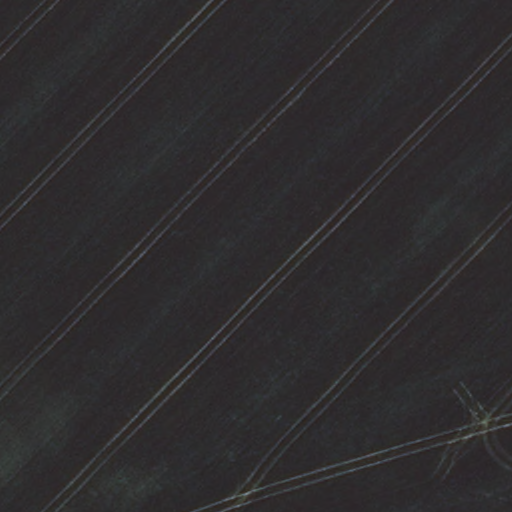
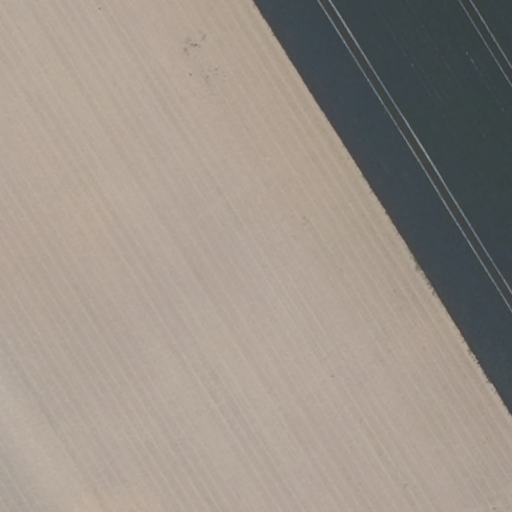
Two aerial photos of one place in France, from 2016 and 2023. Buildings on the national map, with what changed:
[]

